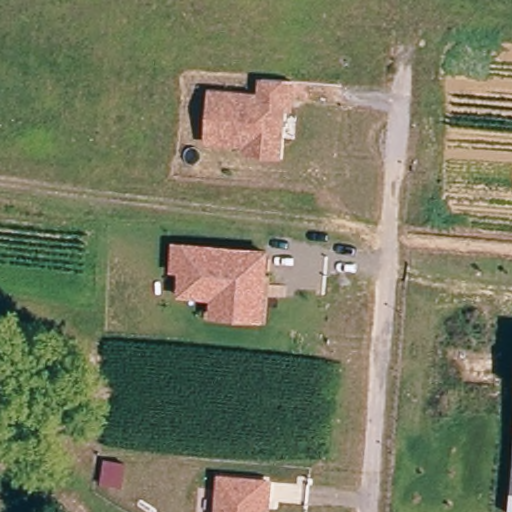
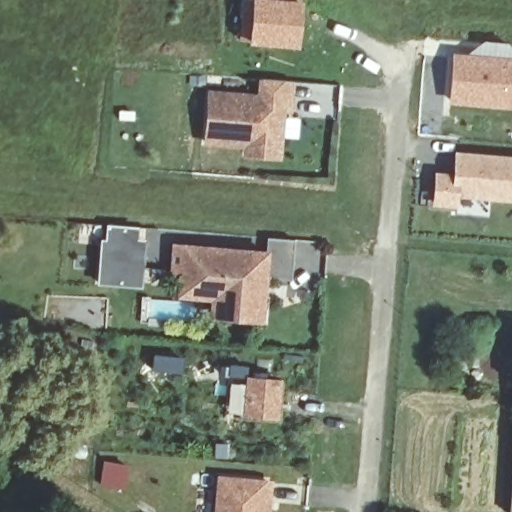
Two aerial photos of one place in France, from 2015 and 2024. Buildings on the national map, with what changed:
new [(299,2),(295,44),(242,40),(245,0),(274,0),(299,2)]
new [(512,109),(449,104),(452,54),(512,58),(512,109)]
unchanged [(245,154),(246,145),(206,140),(210,92),(258,99),(259,82),(267,82),(288,86),(286,105),(286,114),(279,112),(276,144),(275,158),(245,154)]
new [(455,152),(512,155),(512,201),(460,198),(458,208),(432,206),(434,171),(453,173),(455,152)]
new [(146,241),(143,290),(98,286),(101,241),(106,241),(109,227),(137,230),(137,240),(146,241)]
unchanged [(265,322),(209,318),(210,302),(177,299),(178,274),(169,273),(171,243),(269,251),(265,322)]
new [(153,352),(188,354),(186,373),(152,371),(153,352)]
new [(224,363),(247,363),(246,373),(285,377),(280,419),(225,412),(227,377),(223,377),(224,363)]
unchanged [(268,481),(267,499),(266,510),(261,509),(261,512),(216,512),(219,477),(268,481)]

